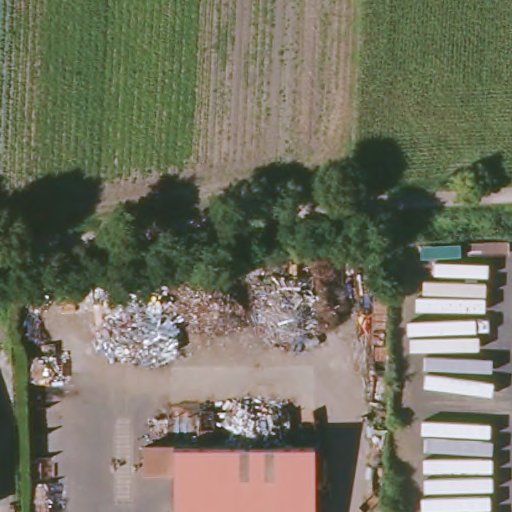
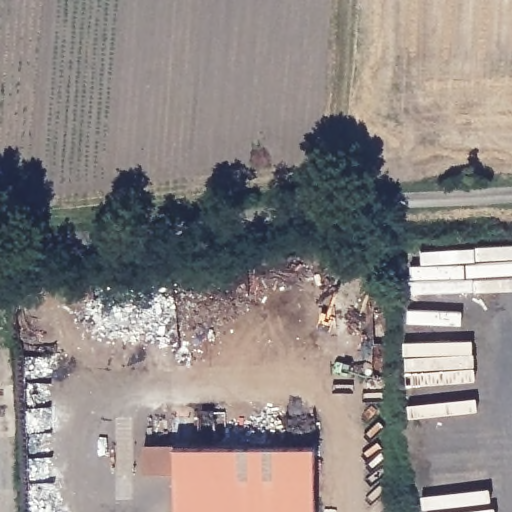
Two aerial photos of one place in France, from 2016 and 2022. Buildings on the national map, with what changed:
unchanged [(174,473),(142,474),(142,446),(174,446),(316,447),(315,512),(174,512),(174,473)]

